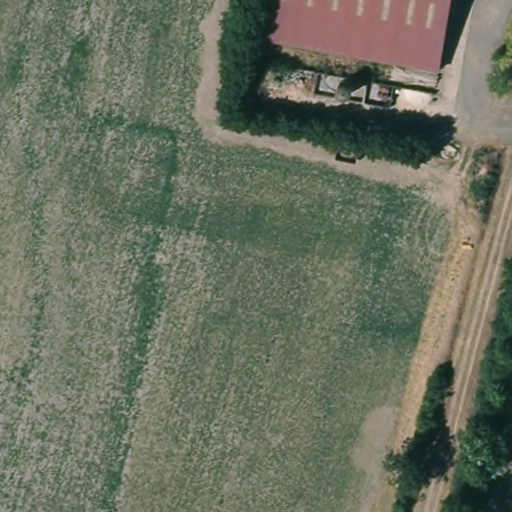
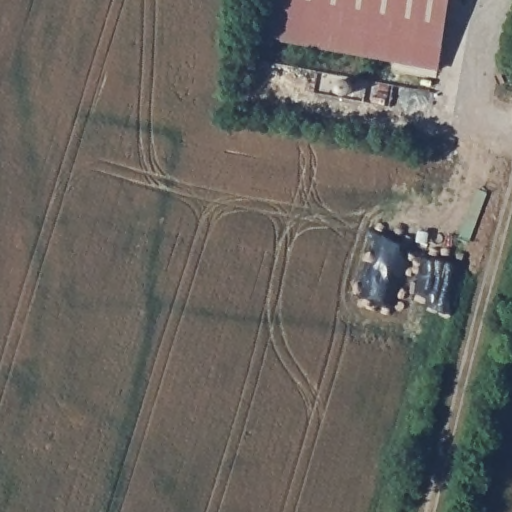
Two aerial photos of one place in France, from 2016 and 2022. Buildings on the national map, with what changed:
unchanged [(435,72),(264,37),(272,0),(445,0),(449,1),(435,72)]
unchanged [(449,0),(449,1),(445,0),(449,0)]

